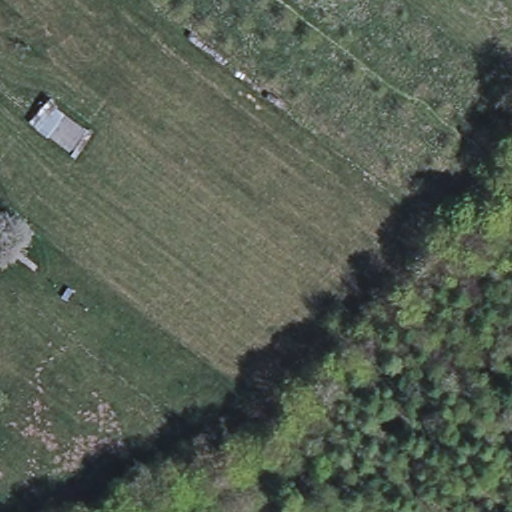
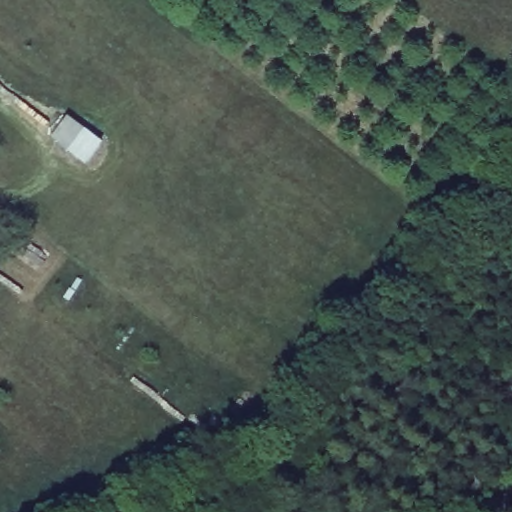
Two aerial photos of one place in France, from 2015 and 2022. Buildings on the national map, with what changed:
unchanged [(25,120),(41,96),(90,130),(73,154),(25,120)]

